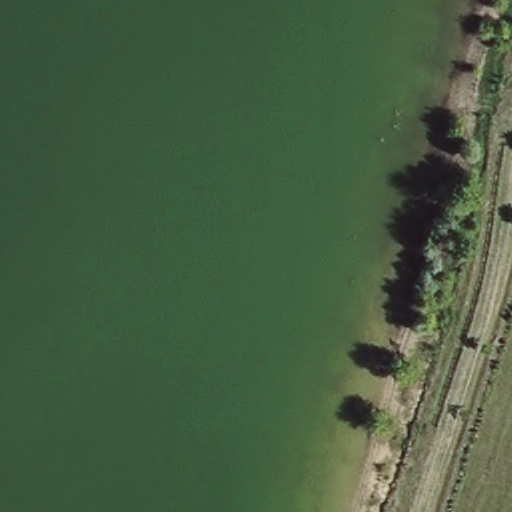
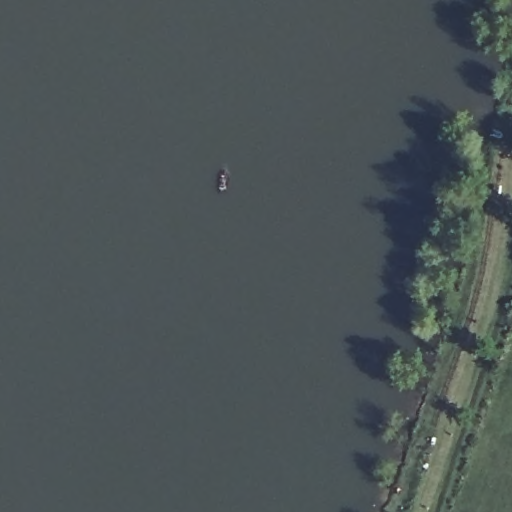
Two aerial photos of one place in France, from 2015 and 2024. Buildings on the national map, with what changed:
[]

